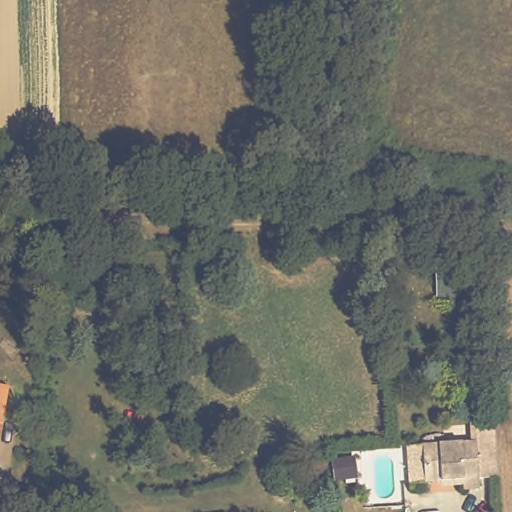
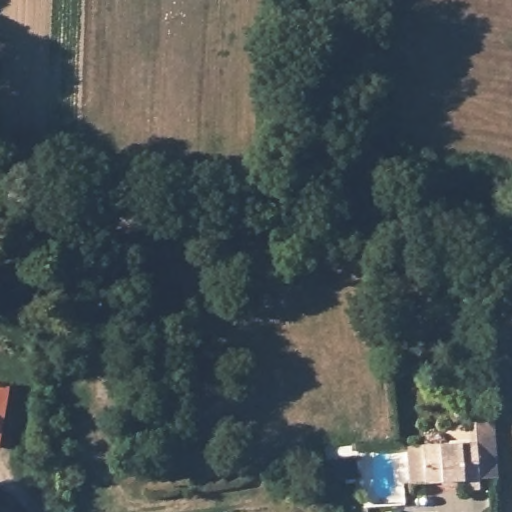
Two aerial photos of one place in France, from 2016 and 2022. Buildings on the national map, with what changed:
unchanged [(5,384),(0,416),(0,383),(5,384)]
unchanged [(472,441),(471,422),(489,421),(491,440),(493,476),(476,477),(476,487),(461,487),(460,478),(407,481),(405,444),(472,441)]
unchanged [(327,464),(346,461),(349,481),(330,483),(327,464)]

